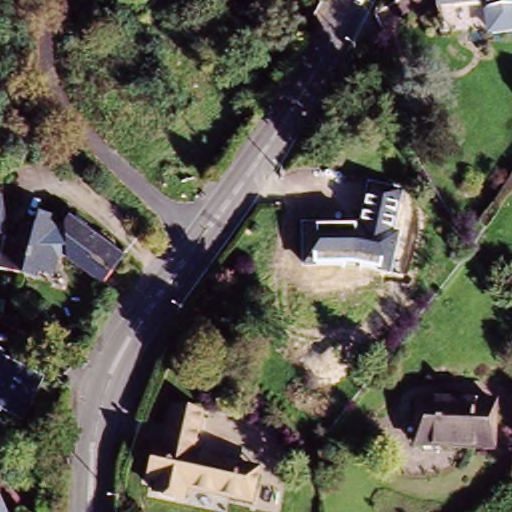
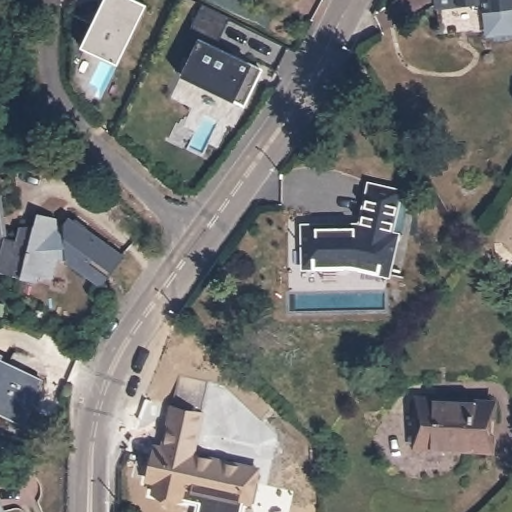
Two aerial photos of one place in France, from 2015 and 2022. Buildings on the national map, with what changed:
new [(83,46),(78,44),(99,0),(140,0),(147,4),(118,64),(83,46)]
unchanged [(485,37),(480,32),(480,11),(479,2),(431,5),(431,0),(511,0),(512,10),(512,20),(512,31),(508,35),(485,37)]
new [(242,105),(178,70),(197,34),(261,67),(242,105)]
unchanged [(300,226),(354,226),(363,184),(394,191),(383,236),(390,236),(380,275),(343,265),(321,266),(302,267),(300,226)]
unchanged [(4,236),(0,237),(0,209),(4,236)]
unchanged [(12,241),(15,227),(32,225),(34,214),(55,219),(52,226),(60,226),(67,215),(122,256),(98,288),(60,260),(54,260),(49,280),(36,276),(34,283),(0,274),(0,238),(12,241)]
unchanged [(1,353),(0,354),(0,352),(1,353)]
unchanged [(40,385),(15,423),(0,414),(0,359),(40,385)]
unchanged [(414,405),(488,405),(487,452),(412,451),(414,405)]
unchanged [(152,445),(162,447),(168,406),(199,411),(192,454),(255,465),(250,500),(175,487),(173,497),(153,494),(155,483),(146,482),(152,445)]

